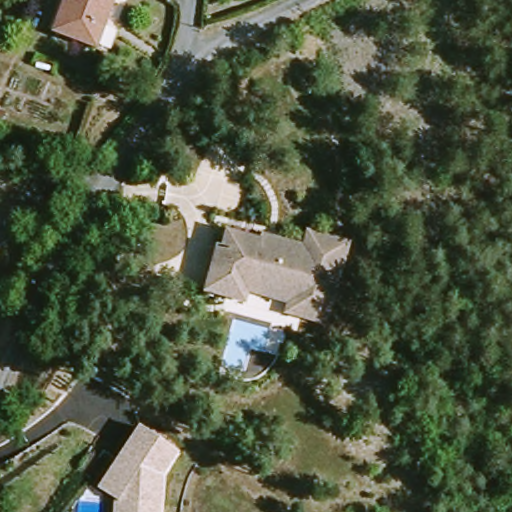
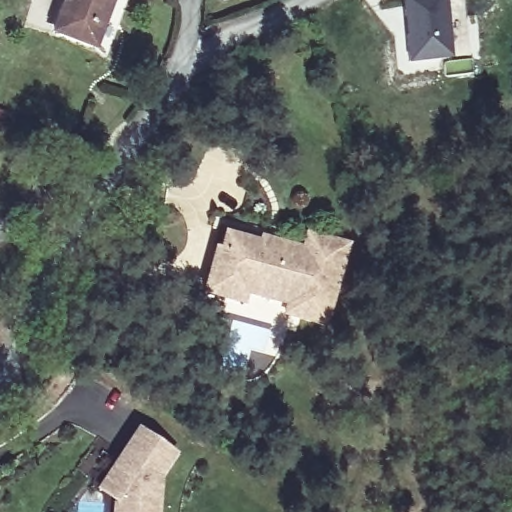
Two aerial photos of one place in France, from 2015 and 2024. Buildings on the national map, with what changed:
unchanged [(58,43),(63,0),(107,0),(102,48),(58,43)]
new [(442,0),(450,57),(408,62),(405,37),(403,18),(401,0),(442,0)]
unchanged [(260,237),(261,233),(305,244),(308,231),(348,242),(325,323),(286,311),(285,316),(240,302),(241,297),(220,291),(205,287),(217,241),(222,242),(227,228),(260,237)]
unchanged [(115,500),(98,490),(109,473),(142,428),(176,453),(160,475),(156,508),(158,508),(158,512),(113,512),(115,500)]

